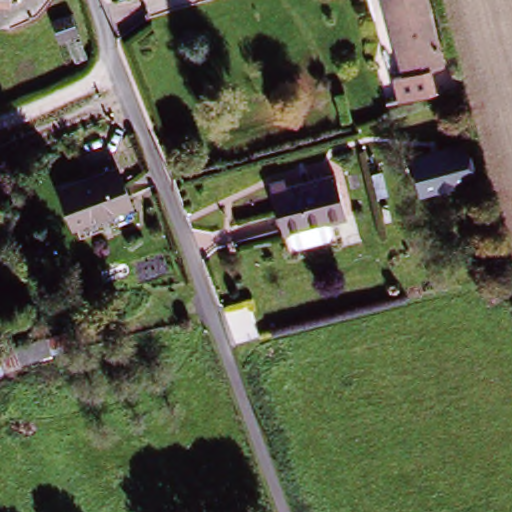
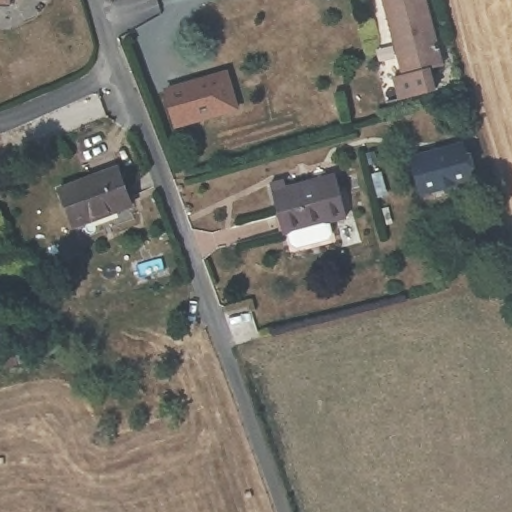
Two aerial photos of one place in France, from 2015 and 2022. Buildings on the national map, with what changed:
unchanged [(6,7),(0,7),(0,0),(6,0),(6,7)]
unchanged [(404,84),(382,0),(421,0),(441,75),(404,84)]
new [(164,89),(227,70),(239,108),(176,127),(164,89)]
unchanged [(475,180),(421,195),(410,155),(464,141),(475,180)]
unchanged [(76,224),(61,187),(107,168),(123,206),(76,224)]
unchanged [(266,182),(284,176),(289,187),(327,173),(337,170),(351,209),(342,213),(342,212),(284,233),(266,182)]

